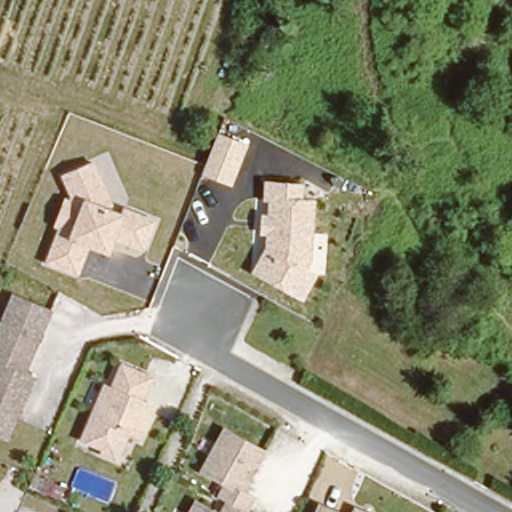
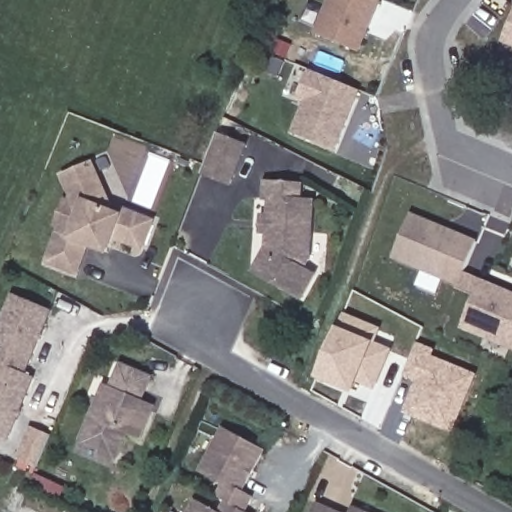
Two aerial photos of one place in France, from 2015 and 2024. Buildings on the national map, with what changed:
new [(329,0),(378,0),(357,51),(315,34),(329,0)]
new [(512,17),(512,46),(503,42),(512,17)]
new [(305,102),(296,98),(308,69),(359,90),(333,150),(292,132),(305,102)]
unchanged [(248,144),(232,183),(204,172),(222,134),(248,144)]
unchanged [(114,205),(156,221),(142,250),(116,239),(111,252),(91,246),(79,273),(47,261),(59,234),(52,231),(65,198),(70,199),(62,177),(95,165),(114,205)]
unchanged [(304,199),(316,199),(311,257),(306,268),(316,274),(302,298),(253,272),(265,252),(268,236),(262,235),(263,216),(269,216),(269,205),(264,205),(266,181),(305,182),(304,199)]
new [(458,288),(459,285),(392,257),(410,215),(477,243),(464,274),(482,282),(512,295),(512,349),(509,348),(483,337),(463,328),(476,296),(458,288)]
unchanged [(52,309),(24,372),(35,377),(8,440),(0,436),(0,323),(13,292),(52,309)]
new [(377,392),(360,383),(354,394),(317,378),(340,327),(346,313),(383,328),(379,342),(395,350),(377,392)]
new [(455,433),(405,413),(417,382),(405,377),(419,342),(437,351),(435,356),(479,375),(455,433)]
unchanged [(152,375),(144,399),(157,405),(143,437),(132,433),(118,460),(101,453),(100,447),(82,441),(105,385),(111,386),(122,362),(152,375)]
unchanged [(244,491),(256,498),(249,512),(188,512),(195,498),(216,508),(222,512),(227,501),(218,494),(227,483),(201,468),(224,427),(266,450),(244,491)]
unchanged [(340,512),(316,512),(320,504),(340,512)]
unchanged [(351,512),(355,506),(370,512),(351,512)]

